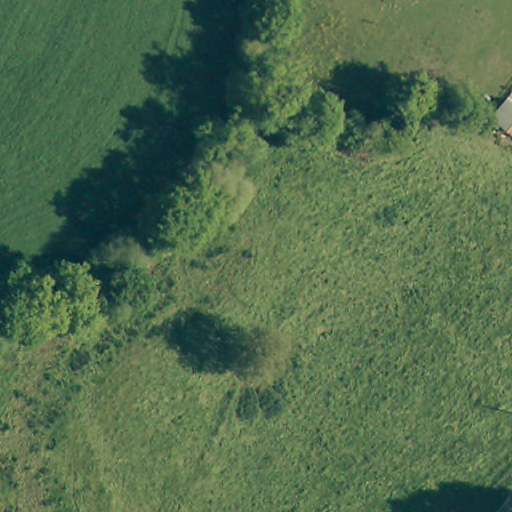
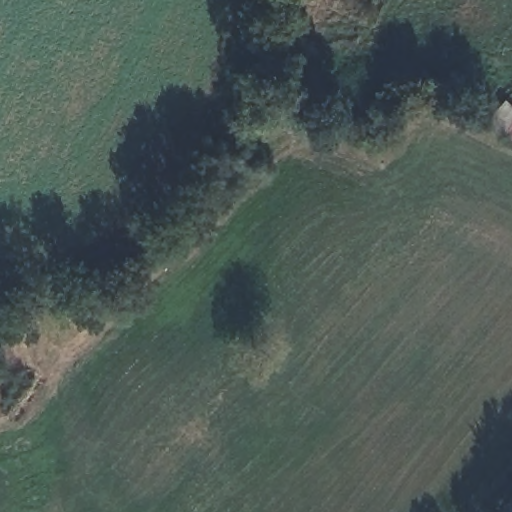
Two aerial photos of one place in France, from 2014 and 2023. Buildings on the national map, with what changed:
unchanged [(512,103),(512,134),(497,121),(512,103)]

